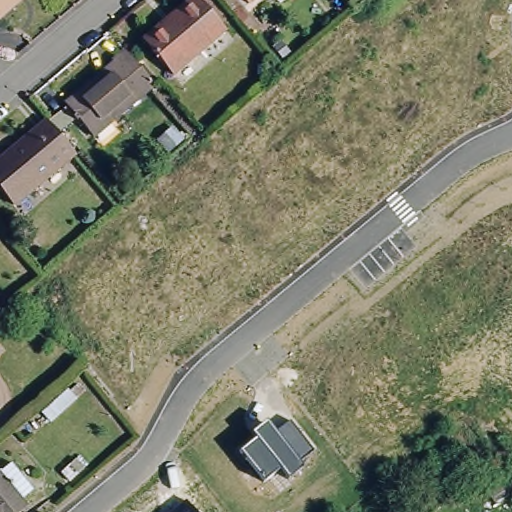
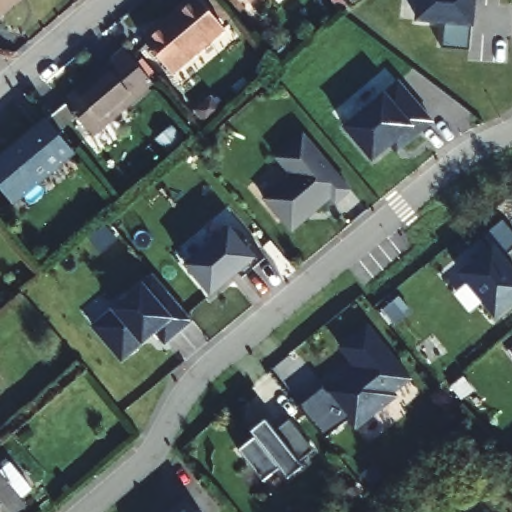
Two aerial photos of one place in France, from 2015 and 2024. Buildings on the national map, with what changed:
unchanged [(2,13),(0,11),(0,0),(14,0),(15,1),(2,13)]
unchanged [(146,38),(175,13),(172,9),(181,0),(205,0),(225,24),(171,68),(146,38)]
new [(447,26),(421,25),(422,0),(476,0),(474,54),(447,53),(447,26)]
unchanged [(149,76),(87,129),(62,98),(109,57),(106,54),(119,43),(149,76)]
new [(345,129),(383,95),(387,96),(402,84),(435,123),(397,155),(392,148),(373,161),(345,129)]
unchanged [(13,205),(0,189),(0,158),(11,149),(15,153),(37,135),(33,131),(46,119),(75,153),(13,205)]
new [(275,156),(303,132),(353,191),(335,205),(332,199),(292,230),(263,198),(291,175),(275,156)]
new [(497,319),(460,273),(493,246),(483,238),(504,221),(512,230),(512,249),(504,256),(512,266),(512,306),(497,319)]
new [(228,227),(238,239),(244,234),(264,258),(242,277),(237,272),(210,294),(185,264),(228,227)]
new [(192,319),(166,343),(158,333),(123,362),(92,327),(153,273),(192,319)]
new [(322,386),(326,390),(350,371),(352,372),(357,368),(340,346),(366,325),(408,378),(391,392),(394,395),(355,427),(347,418),(323,438),(297,405),(322,386)]
unchanged [(265,416),(273,427),(287,417),(310,446),(298,460),(302,466),(287,479),(278,469),(262,481),(237,450),(254,438),(248,429),(265,416)]
unchanged [(0,472),(5,468),(35,505),(27,512),(0,512),(0,472)]
unchanged [(195,512),(169,512),(185,499),(195,512)]

